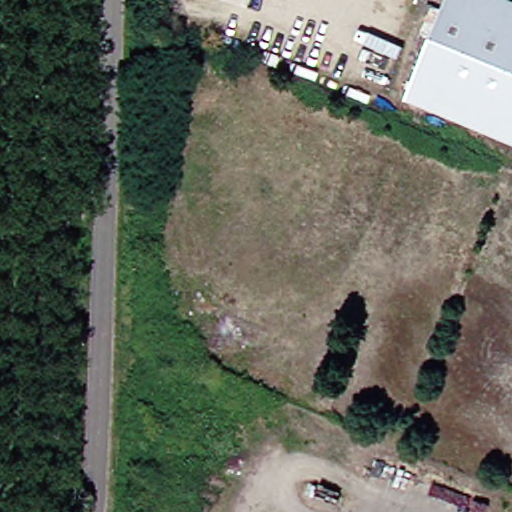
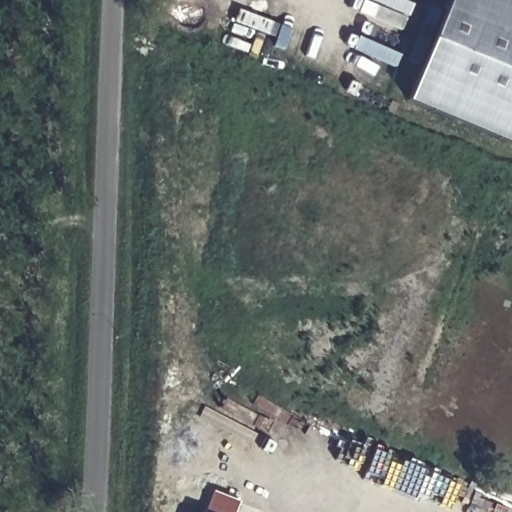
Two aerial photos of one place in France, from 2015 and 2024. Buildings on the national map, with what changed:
unchanged [(502,0),(512,4),(512,142),(398,94),(440,0),(502,0)]
new [(234,512),(204,512),(212,492),(239,503),(234,512)]

